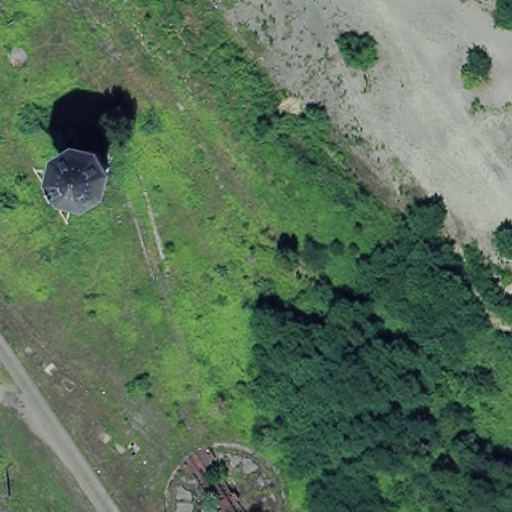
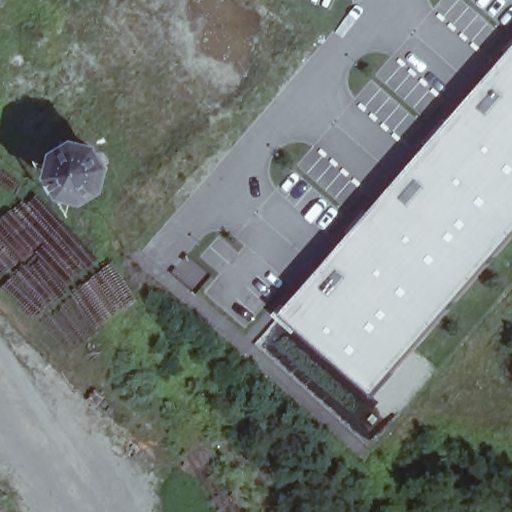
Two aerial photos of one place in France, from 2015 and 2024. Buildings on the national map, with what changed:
new [(277,315),(512,46),(512,236),(371,397),(277,315)]

